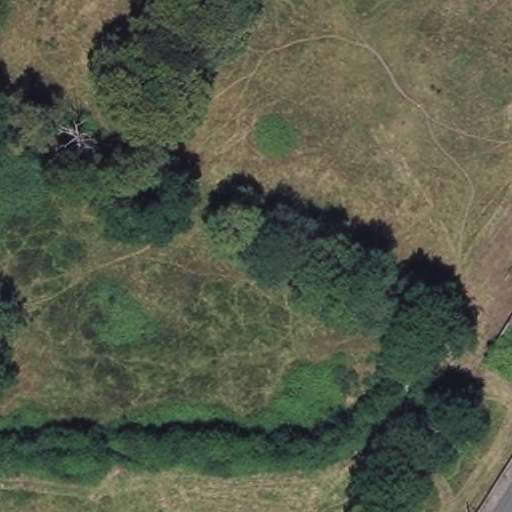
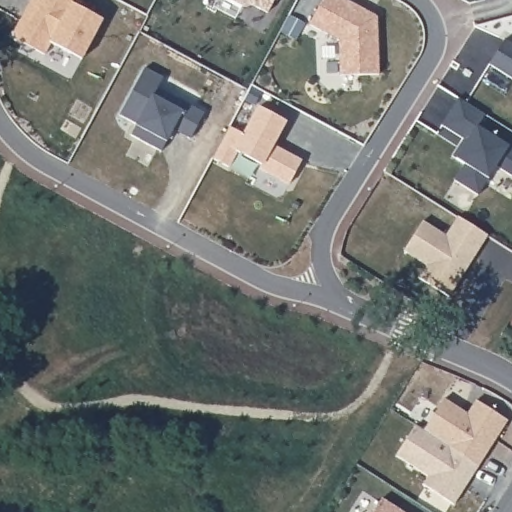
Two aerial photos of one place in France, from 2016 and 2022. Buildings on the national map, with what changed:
new [(14,33),(30,0),(75,0),(73,4),(104,20),(82,60),(50,43),(44,54),(16,41),(14,33)]
new [(253,6),(244,8),(229,0),(274,0),(267,13),(253,6)]
new [(376,16),(376,20),(378,75),(340,76),(338,41),(309,25),(322,0),(346,0),(365,10),(376,16)]
new [(505,40),(512,44),(512,79),(489,65),(505,40)]
new [(144,69),(162,78),(156,88),(204,114),(190,139),(174,131),(161,151),(130,135),(136,125),(119,116),(144,69)]
new [(459,99),(485,115),(477,128),(512,150),(512,177),(495,166),(477,195),(455,181),(465,165),(456,160),(452,157),(463,140),(441,126),(459,99)]
new [(211,159),(228,128),(241,135),(256,107),(287,123),(275,146),(301,164),(290,186),(258,171),(261,166),(235,153),(229,169),(211,159)]
new [(448,298),(418,278),(425,267),(402,252),(422,222),(445,237),(457,217),(487,236),(474,257),(463,274),(448,298)]
new [(443,399),(467,414),(476,401),(508,421),(478,466),(423,431),(443,399)]
new [(453,505),(422,485),(428,477),(395,456),(415,425),(423,431),(478,466),(453,505)]
new [(382,499),(404,512),(373,512),(382,499)]

